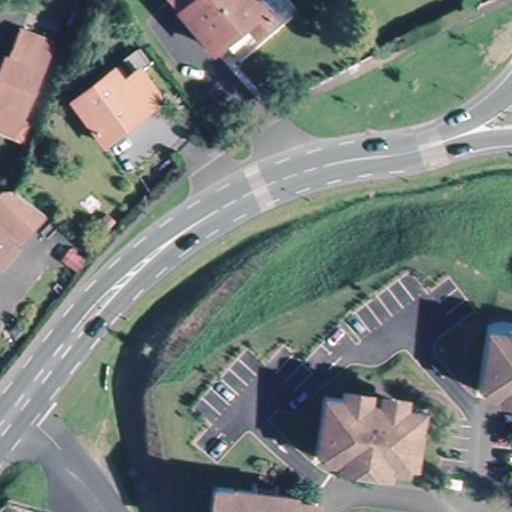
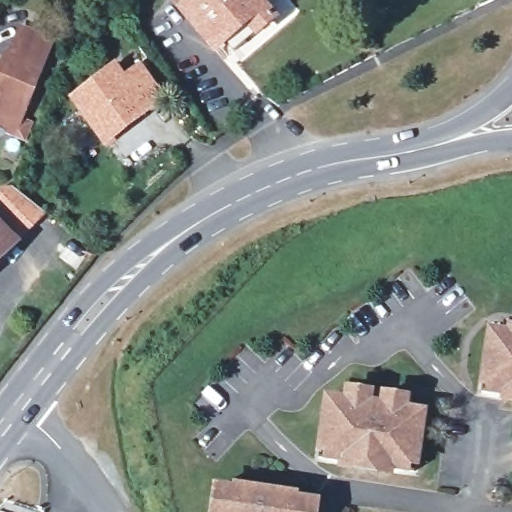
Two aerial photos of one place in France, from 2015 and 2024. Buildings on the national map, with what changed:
unchanged [(224,41),(214,49),(173,0),(258,0),(274,18),(233,53),(224,41)]
unchanged [(0,70),(5,56),(10,58),(21,30),(52,43),(19,124),(15,135),(0,129),(0,70)]
unchanged [(119,80),(134,69),(155,98),(99,143),(69,100),(109,69),(119,80)]
unchanged [(45,217),(0,257),(0,189),(3,188),(45,217)]
unchanged [(504,396),(482,392),(485,367),(491,333),(509,336),(511,329),(512,330),(512,397),(504,396)]
unchanged [(397,464),(347,457),(324,453),(327,428),(332,395),(351,398),(352,392),(409,400),(409,406),(428,409),(423,442),(419,467),(397,464)]
unchanged [(217,508),(222,474),(242,477),(260,480),(262,474),(279,476),(279,483),(297,485),(318,488),(314,512),(216,512),(217,508)]

